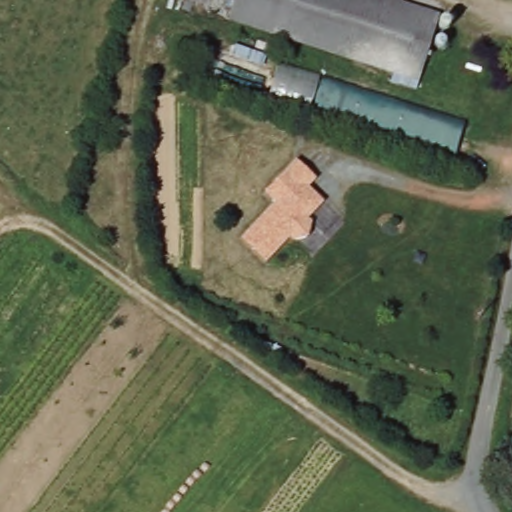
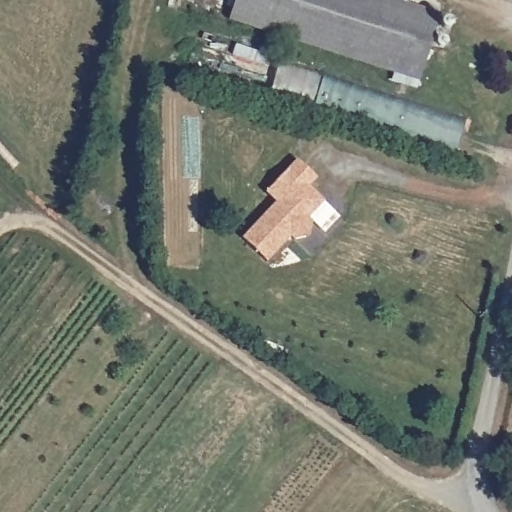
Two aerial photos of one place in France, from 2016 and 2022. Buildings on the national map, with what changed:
unchanged [(235,0),(420,0),(442,7),(419,65),(234,1),(235,0)]
unchanged [(466,115),(453,158),(187,73),(195,31),(466,115)]
unchanged [(274,201),(265,192),(297,158),(318,178),(309,186),(325,202),(312,217),(308,237),(290,239),(266,262),(240,236),(274,201)]

